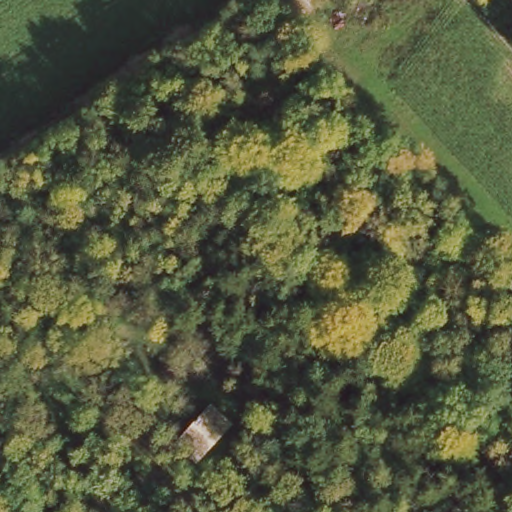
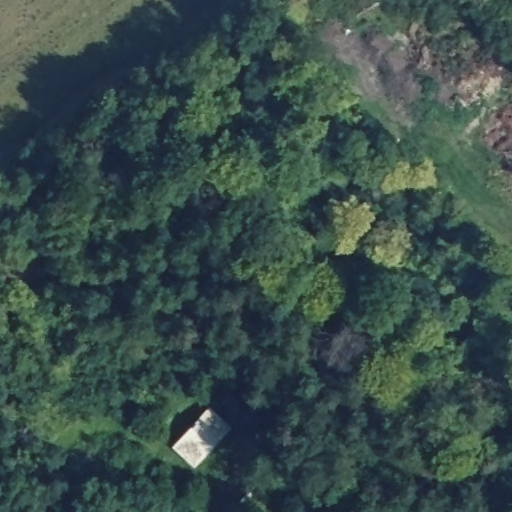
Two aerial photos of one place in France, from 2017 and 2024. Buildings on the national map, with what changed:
unchanged [(232,418),(197,462),(175,440),(210,402),(232,418)]
unchanged [(250,511),(238,500),(257,477),(272,488),(250,511)]

